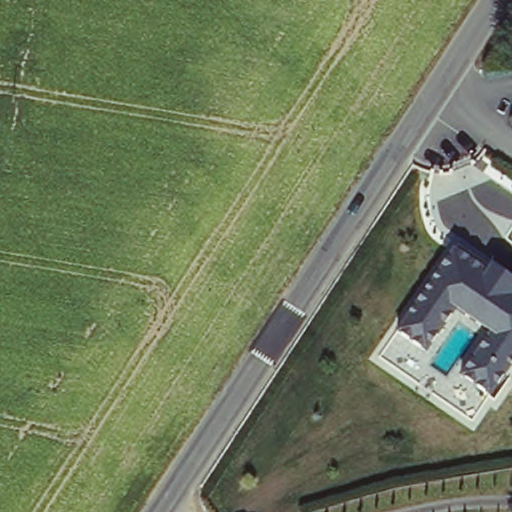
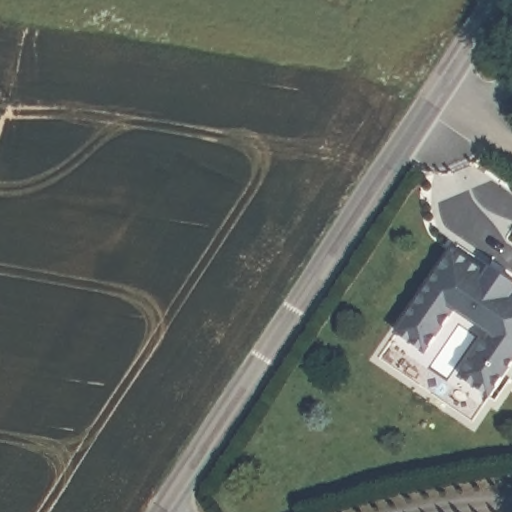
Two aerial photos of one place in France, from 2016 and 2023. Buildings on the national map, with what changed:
unchanged [(488,396),(458,375),(489,331),(459,311),(425,353),(395,330),(455,249),(484,268),(488,263),(512,280),(512,363),(488,396)]

